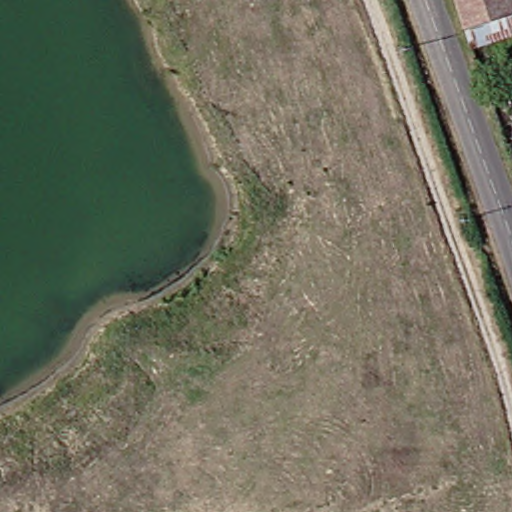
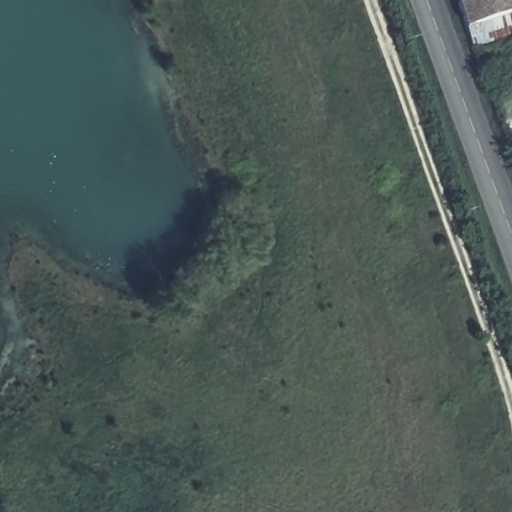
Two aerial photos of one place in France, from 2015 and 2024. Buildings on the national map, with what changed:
unchanged [(453,28),(445,0),(501,0),(505,11),(453,28)]
unchanged [(505,11),(512,31),(460,48),(453,28),(505,11)]

